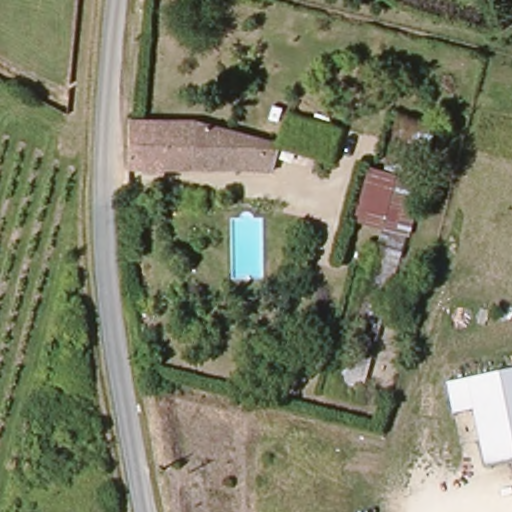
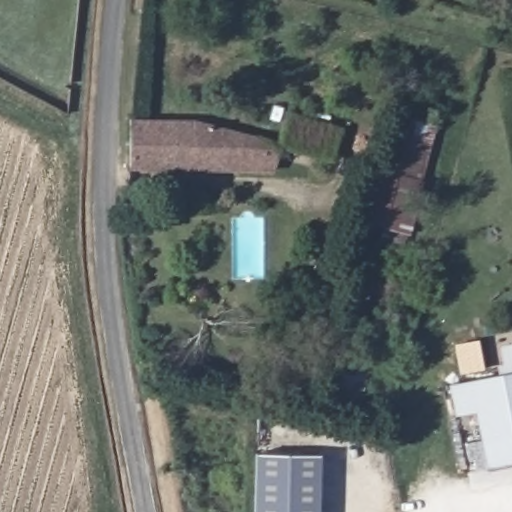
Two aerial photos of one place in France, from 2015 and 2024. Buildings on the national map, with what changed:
unchanged [(367,398),(328,386),(361,242),(379,245),(383,231),(348,221),(367,164),(386,169),(397,116),(434,127),(367,398)]
demolished [(286,117),(340,132),(332,157),(281,144),(286,117)]
unchanged [(132,170),(134,122),(192,119),(281,144),(276,170),(132,170)]
unchanged [(193,195),(193,184),(207,183),(207,195),(193,195)]
unchanged [(486,470),(474,412),(455,416),(449,386),(512,373),(512,465),(486,470)]
new [(321,454),(319,512),(254,512),(255,453),(321,454)]

